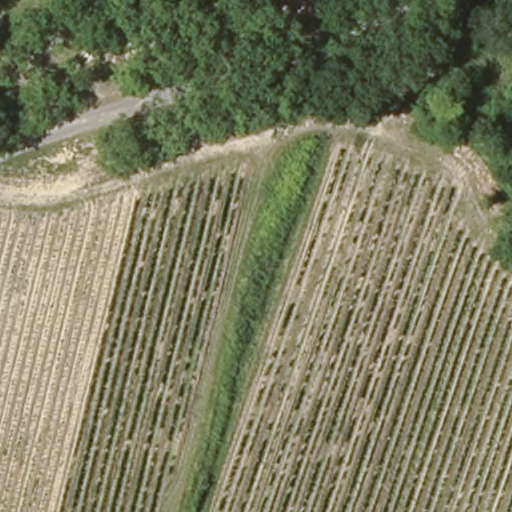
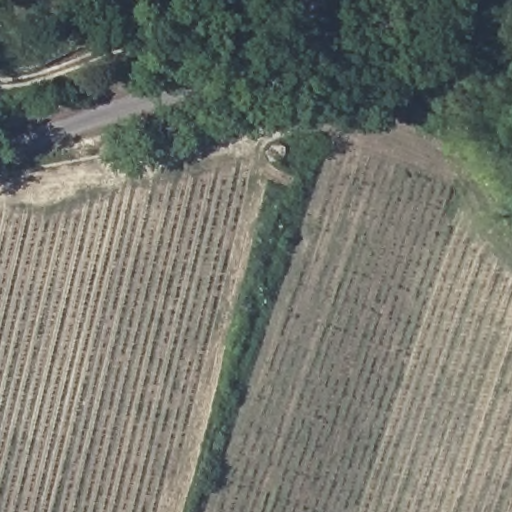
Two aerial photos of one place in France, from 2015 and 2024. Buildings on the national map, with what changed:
unchanged [(278,0),(283,0),(279,2),(278,0)]

